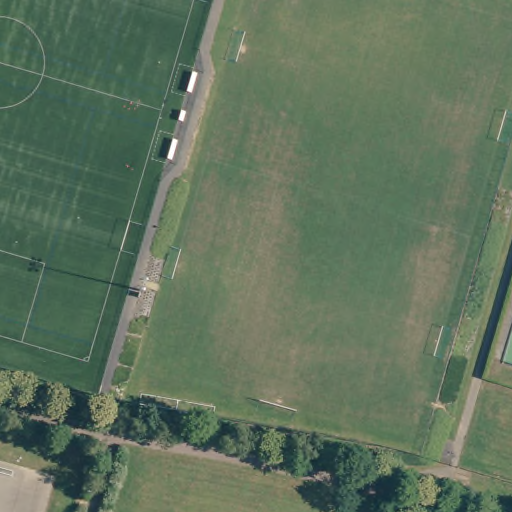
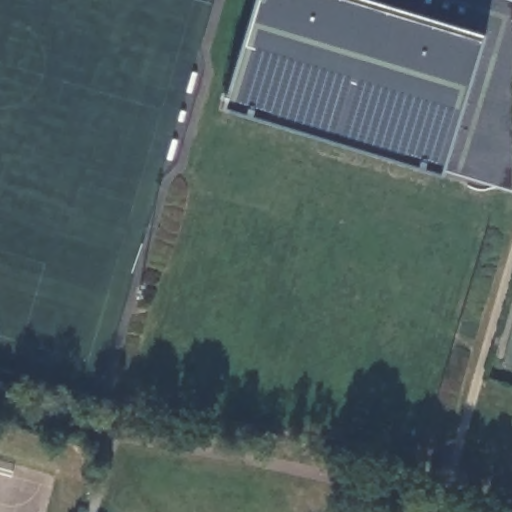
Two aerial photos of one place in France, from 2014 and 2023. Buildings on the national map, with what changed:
new [(440,175),(220,107),(253,0),(512,0),(512,192),(443,166),(440,175)]

